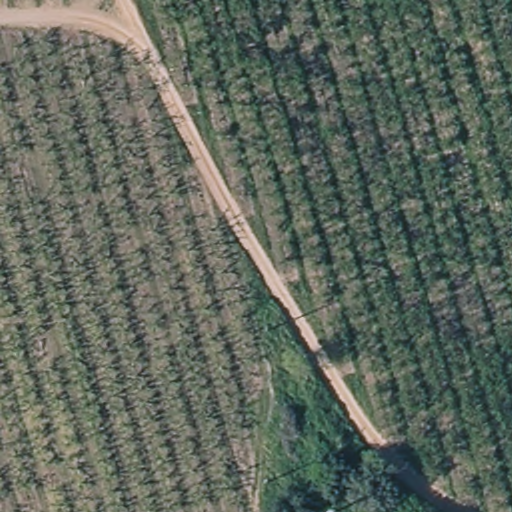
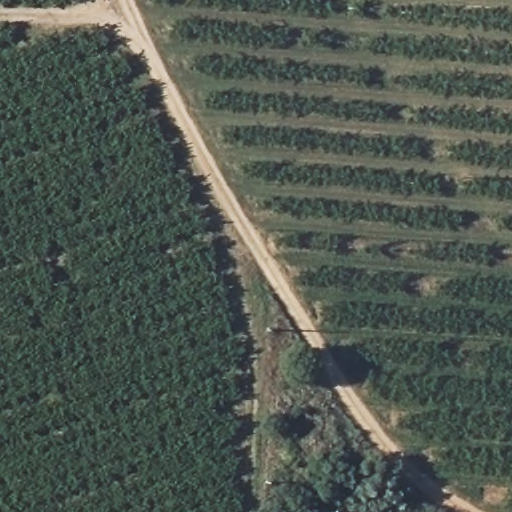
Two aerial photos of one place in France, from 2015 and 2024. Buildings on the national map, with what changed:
unchanged [(338,512),(321,512),(320,508),(335,504),(338,512)]

